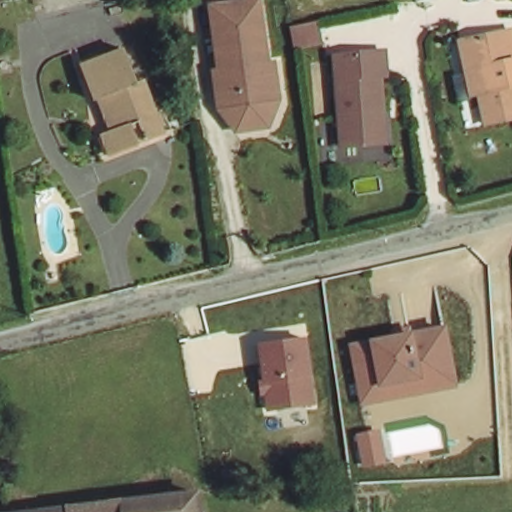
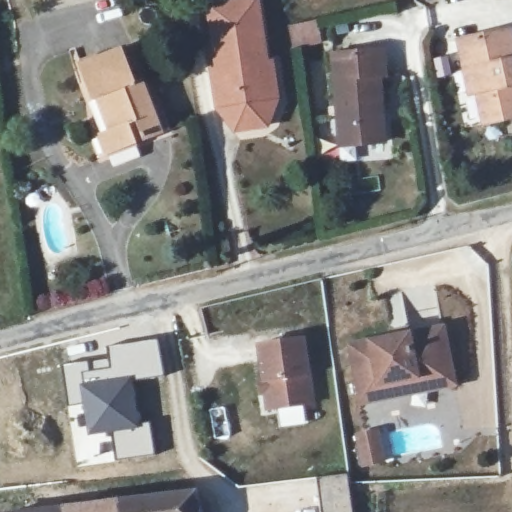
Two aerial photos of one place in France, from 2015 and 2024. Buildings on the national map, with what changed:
unchanged [(234,128),(216,105),(210,68),(215,68),(205,4),(228,0),(254,0),(264,60),(269,59),(273,78),(275,94),(265,123),(234,128)]
unchanged [(512,122),(484,128),(472,71),(465,72),(459,41),(512,30),(512,122)]
unchanged [(134,85),(142,82),(162,136),(105,156),(99,140),(115,134),(104,97),(92,101),(80,65),(122,48),(134,85)]
unchanged [(388,76),(382,76),(386,145),(340,148),(334,53),(387,50),(388,76)]
unchanged [(363,406),(349,343),(369,338),(411,331),(445,323),(458,388),(363,406)]
unchanged [(268,412),(259,344),(306,336),(316,405),(268,412)]
new [(142,426),(112,432),(87,436),(82,406),(68,408),(63,365),(88,361),(109,358),(108,347),(157,339),(163,375),(134,381),(142,422),(142,426)]
new [(224,405),(230,437),(213,440),(207,409),(224,405)]
new [(369,443),(365,424),(363,413),(383,409),(385,420),(389,439),(369,443)]
new [(142,426),(142,422),(149,420),(154,454),(116,460),(112,432),(142,426)]
new [(347,472),(353,512),(321,512),(317,476),(347,472)]
unchanged [(201,489),(205,512),(0,512),(0,510),(201,489)]

